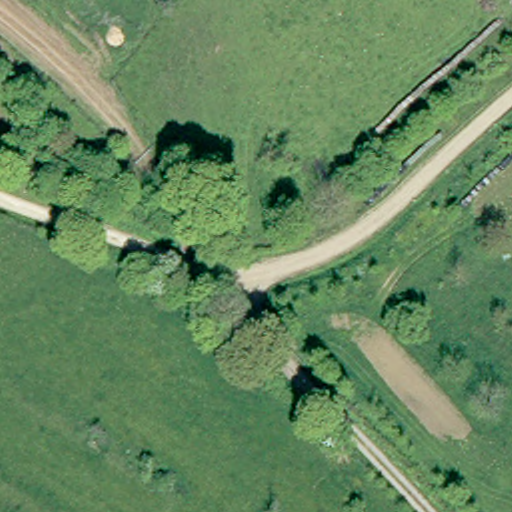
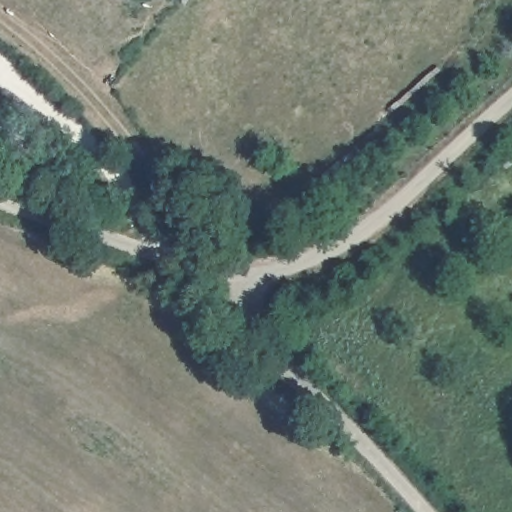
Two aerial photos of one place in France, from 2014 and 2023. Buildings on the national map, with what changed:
[]

